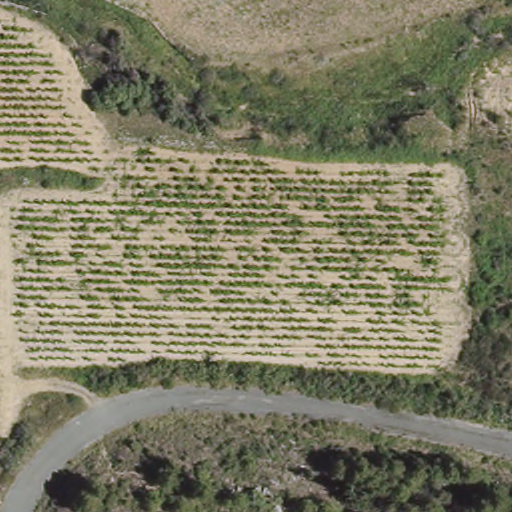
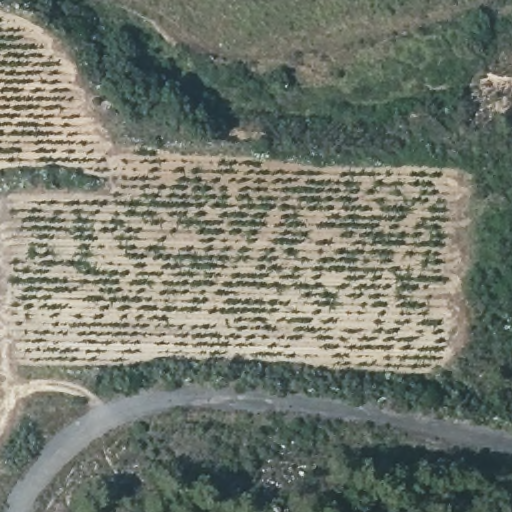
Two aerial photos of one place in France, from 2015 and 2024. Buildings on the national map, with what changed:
[]

